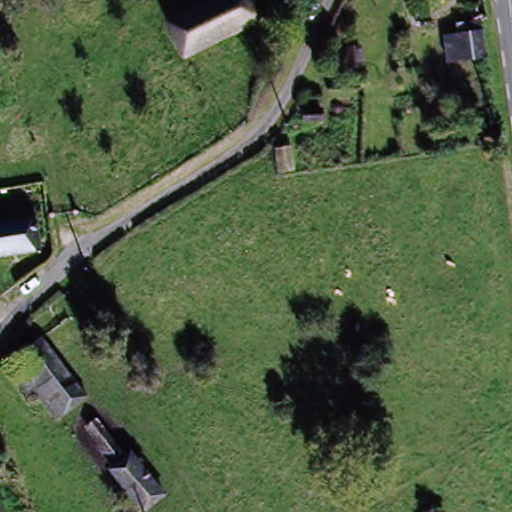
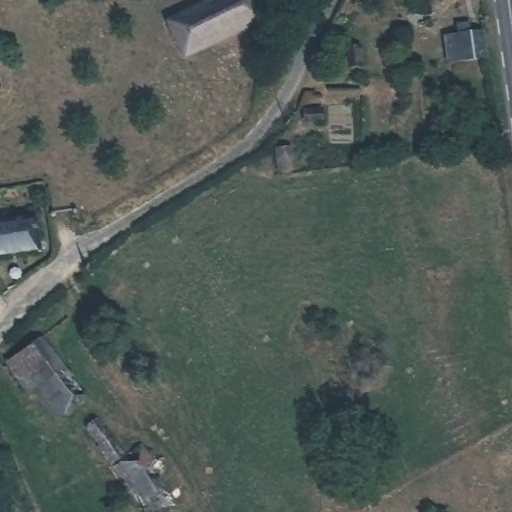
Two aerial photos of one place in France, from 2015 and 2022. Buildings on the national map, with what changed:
unchanged [(257,25),(188,60),(170,22),(212,0),(244,0),(257,25)]
unchanged [(429,1),(429,0),(436,0),(429,1)]
unchanged [(479,74),(455,76),(451,37),(475,35),(479,74)]
unchanged [(370,72),(351,74),(350,49),(369,48),(370,72)]
unchanged [(335,128),(315,130),(315,104),(334,104),(335,128)]
unchanged [(0,251),(0,227),(38,220),(40,245),(0,251)]
unchanged [(37,337),(86,405),(56,425),(25,381),(16,386),(13,382),(0,367),(37,337)]
unchanged [(97,442),(105,436),(128,470),(135,466),(160,503),(148,512),(133,512),(111,481),(118,476),(97,442)]

